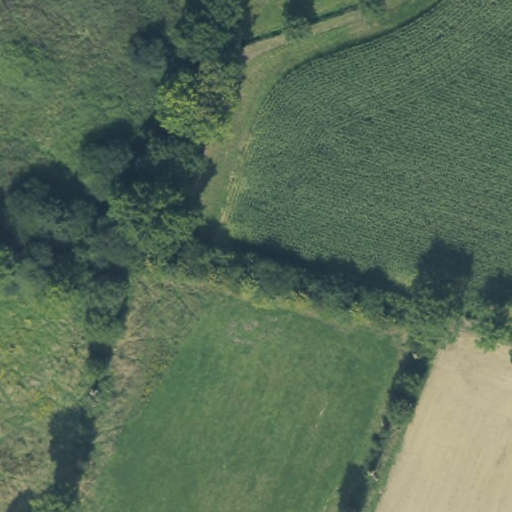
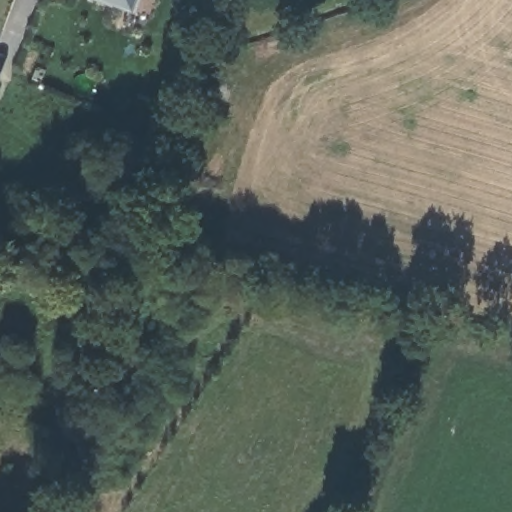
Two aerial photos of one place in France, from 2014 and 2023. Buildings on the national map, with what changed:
new [(131,12),(99,0),(135,0),(131,12)]

